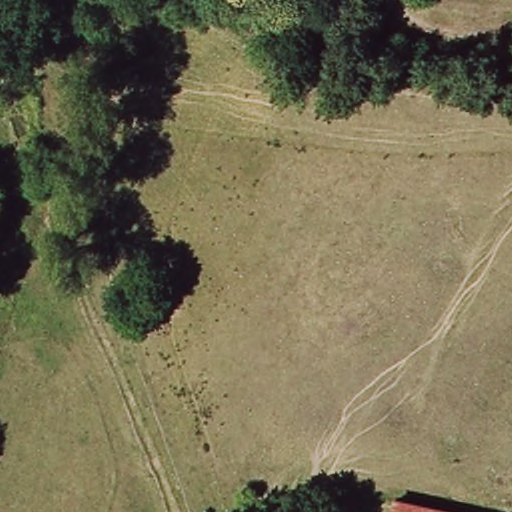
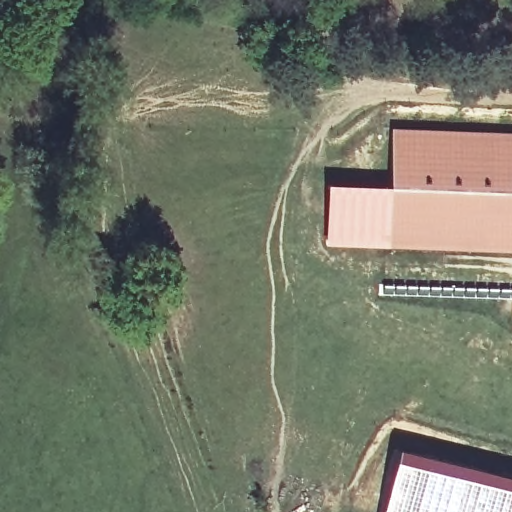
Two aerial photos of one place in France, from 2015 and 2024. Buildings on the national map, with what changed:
new [(512,134),(512,253),(388,248),(394,130),(512,134)]
demolished [(476,512),(395,512),(398,494),(476,512)]

